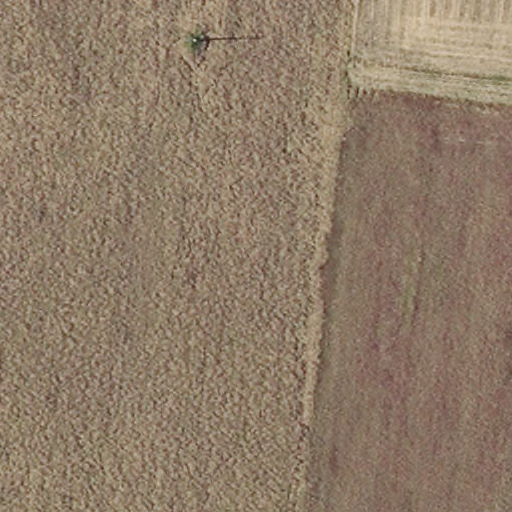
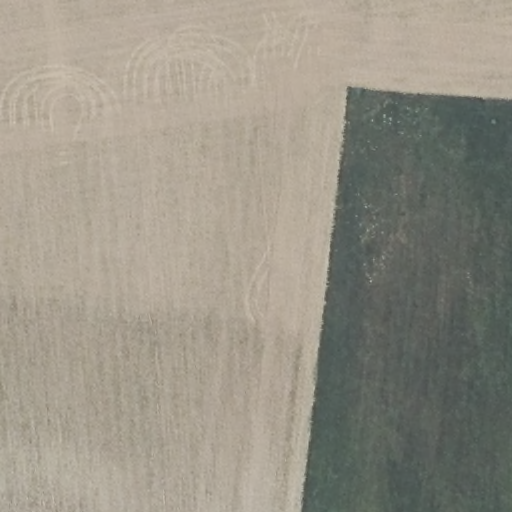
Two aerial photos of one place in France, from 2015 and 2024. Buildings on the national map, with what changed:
[]

